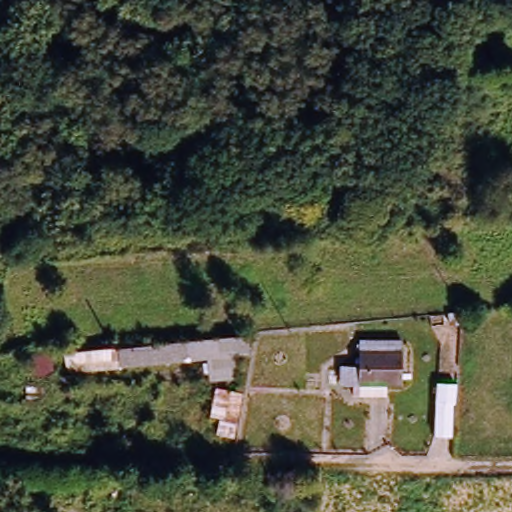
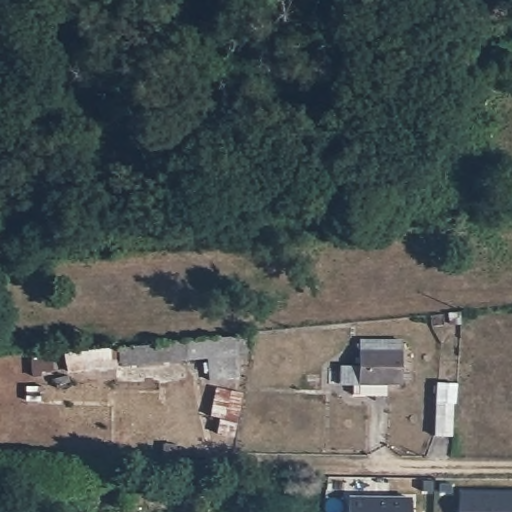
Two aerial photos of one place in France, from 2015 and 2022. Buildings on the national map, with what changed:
unchanged [(181,338),(253,332),(254,349),(232,350),(233,368),(217,369),(216,352),(72,365),(71,348),(181,338)]
unchanged [(402,343),(401,385),(342,385),(342,369),(359,369),(359,342),(402,343)]
unchanged [(426,443),(431,388),(456,391),(452,446),(426,443)]
unchanged [(234,443),(212,442),(214,422),(205,419),(208,391),(242,395),(234,443)]
unchanged [(154,450),(177,450),(177,459),(203,458),(205,474),(155,473),(154,450)]
new [(512,487),(512,512),(461,512),(462,486),(512,487)]
demolished [(400,499),(398,512),(330,512),(333,490),(400,499)]
new [(415,502),(414,512),(352,512),(352,501),(415,502)]

